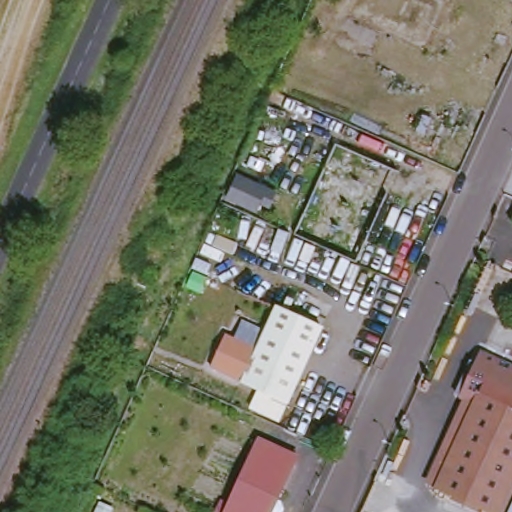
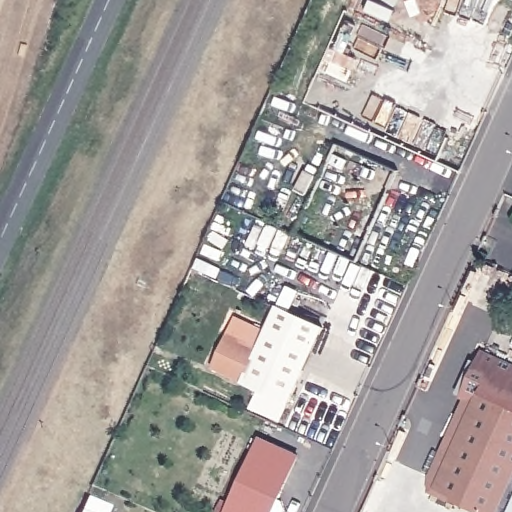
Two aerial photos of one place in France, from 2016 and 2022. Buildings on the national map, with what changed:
unchanged [(252,406),(260,388),(245,381),(238,378),(213,366),(228,334),(253,346),(260,349),(279,308),(322,327),(290,401),(282,420),(252,406)]
unchanged [(433,474),(457,418),(466,396),(458,393),(473,359),(478,361),(483,349),(512,362),(512,479),(498,512),(438,487),(430,483),(433,474)]
unchanged [(253,439),(292,456),(268,512),(221,512),(253,439)]
unchanged [(512,479),(512,512),(498,512),(512,479)]

